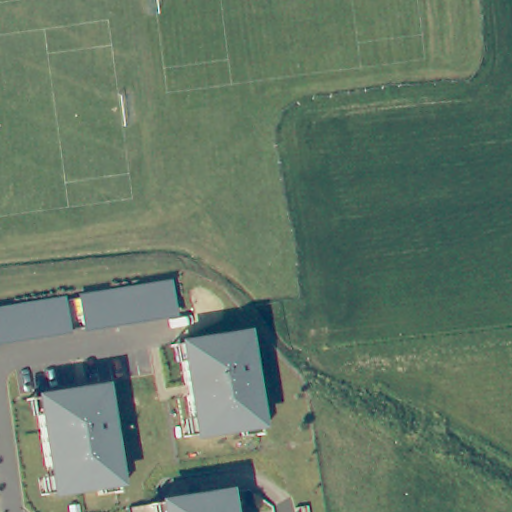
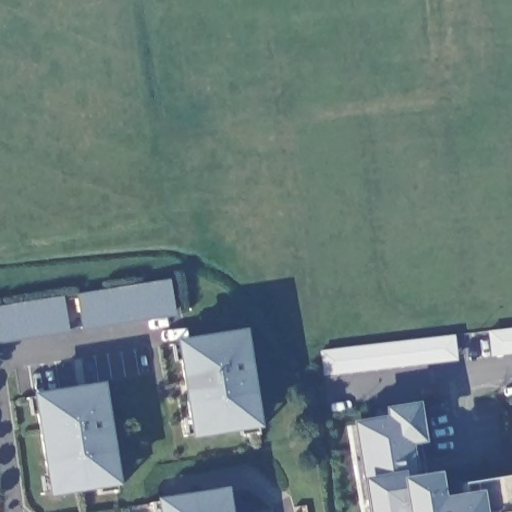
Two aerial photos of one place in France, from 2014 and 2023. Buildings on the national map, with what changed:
unchanged [(168,282),(173,313),(0,341),(0,309),(168,282)]
unchanged [(232,325),(256,420),(193,435),(170,341),(232,325)]
new [(486,330),(512,328),(512,354),(489,357),(486,330)]
new [(457,361),(322,377),(318,351),(453,336),(457,361)]
unchanged [(100,387),(115,483),(50,493),(35,398),(100,387)]
new [(364,478),(353,423),(386,417),(383,410),(420,402),(426,442),(411,445),(422,475),(437,471),(441,497),(465,493),(460,483),(512,474),(512,512),(369,512),(364,478)]
unchanged [(222,492),(226,512),(160,512),(159,502),(222,492)]

